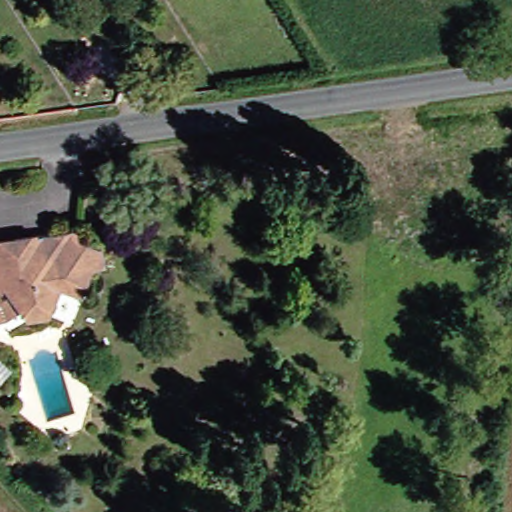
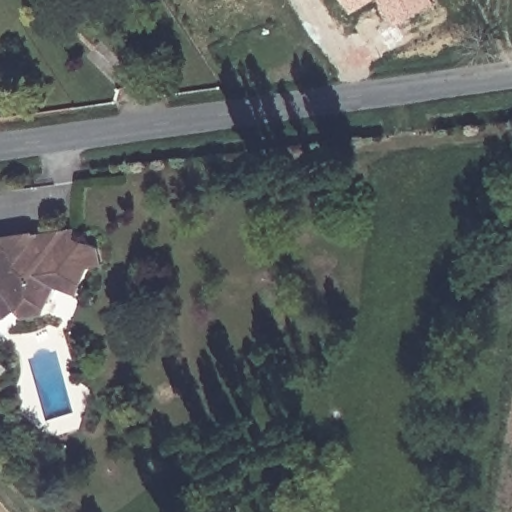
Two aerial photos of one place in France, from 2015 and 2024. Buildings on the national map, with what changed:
new [(353,15),(344,0),(376,0),(353,15)]
new [(399,27),(382,0),(437,0),(438,1),(399,27)]
unchanged [(93,245),(94,264),(84,265),(72,295),(52,296),(41,310),(20,311),(0,288),(0,236),(5,235),(67,226),(69,235),(93,245)]

